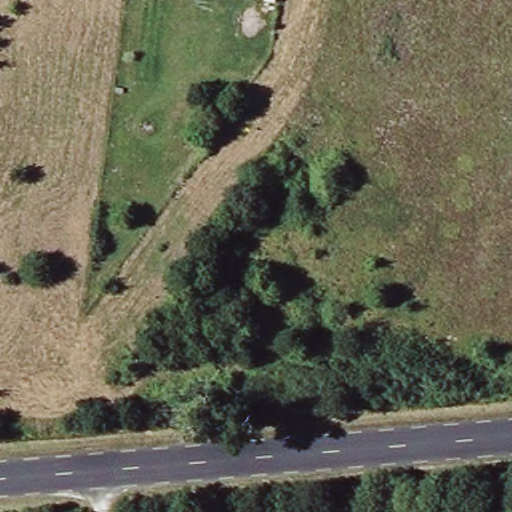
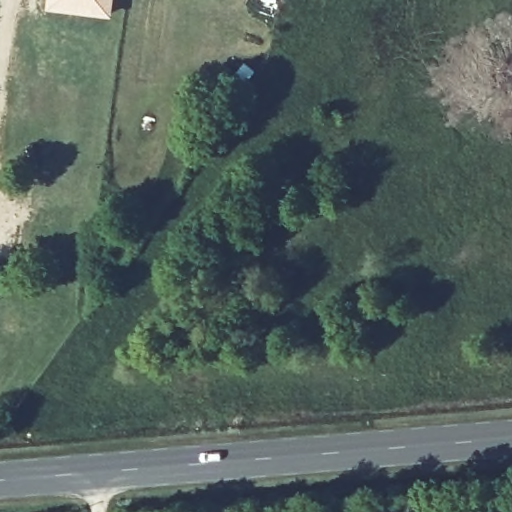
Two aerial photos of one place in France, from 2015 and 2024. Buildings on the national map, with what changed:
new [(114,0),(111,18),(44,11),(46,0),(114,0)]

